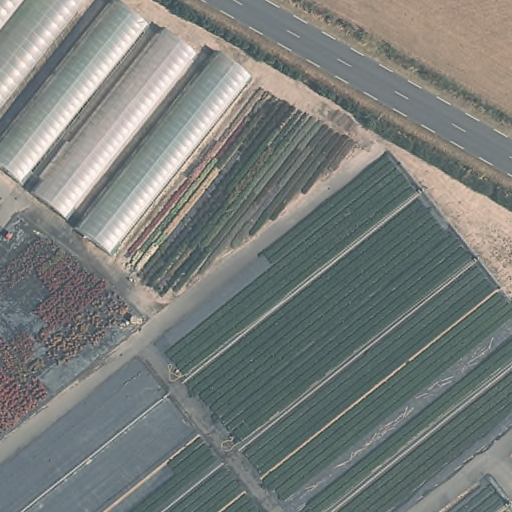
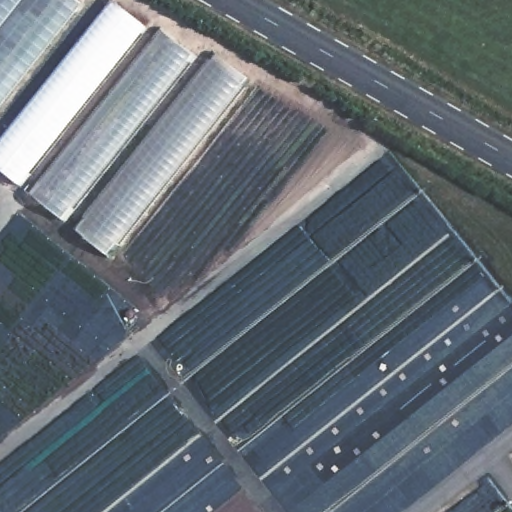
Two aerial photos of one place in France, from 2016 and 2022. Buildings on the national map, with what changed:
unchanged [(0,104),(0,0),(80,0),(0,104)]
unchanged [(111,0),(114,0),(158,33),(161,29),(205,64),(213,54),(248,79),(108,255),(0,169),(0,143),(111,0)]

